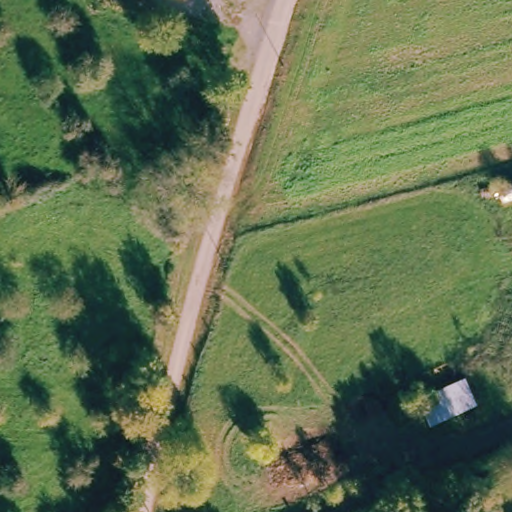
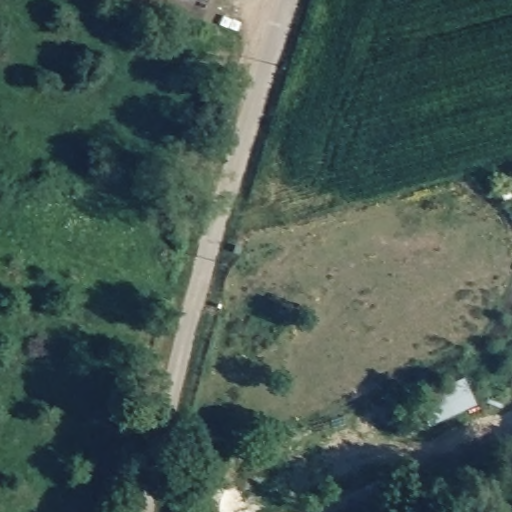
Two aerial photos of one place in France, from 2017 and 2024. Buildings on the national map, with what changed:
unchanged [(427,425),(414,395),(462,375),(475,402),(427,425)]

